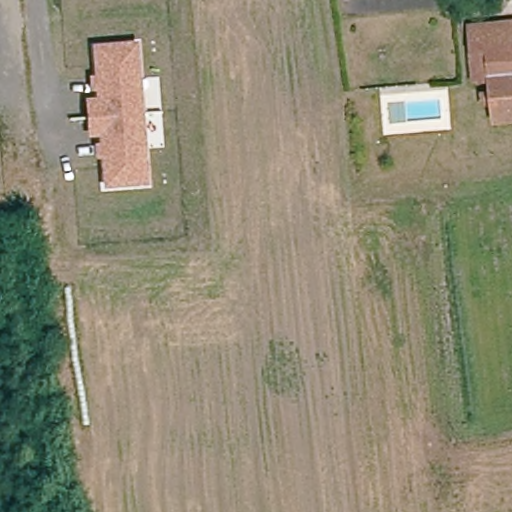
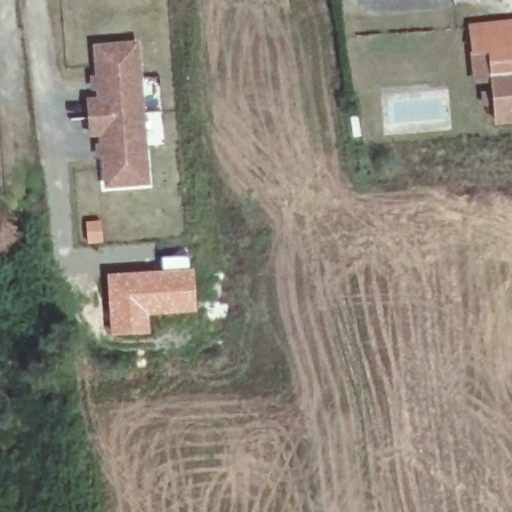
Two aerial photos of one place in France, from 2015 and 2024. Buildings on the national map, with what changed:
unchanged [(472,65),(470,29),(482,26),(512,24),(512,85),(487,87),(485,65),(472,65)]
unchanged [(103,189),(100,159),(96,159),(95,144),(100,143),(99,138),(87,139),(85,99),(95,98),(95,92),(90,91),(89,77),(94,76),(92,45),(137,42),(150,185),(103,189)]
unchanged [(490,111),(487,87),(512,85),(512,109),(490,111)]
new [(161,269),(161,258),(189,257),(191,268),(193,268),(197,314),(149,317),(150,334),(110,337),(106,274),(161,269)]

